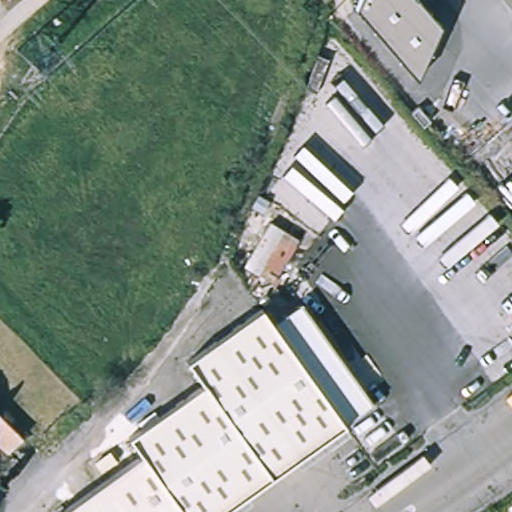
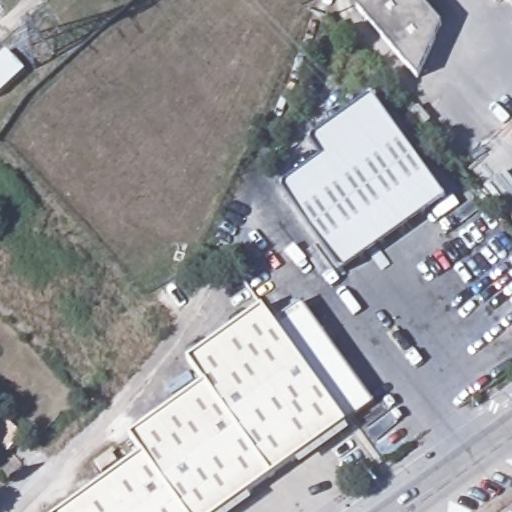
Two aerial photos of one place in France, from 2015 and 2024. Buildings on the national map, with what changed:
unchanged [(357,8),(360,0),(415,0),(439,26),(417,78),(357,8)]
unchanged [(512,0),(512,7),(506,0),(512,0)]
new [(444,198),(340,273),(278,187),(319,158),(306,140),(370,96),(444,198)]
unchanged [(142,454),(130,437),(162,414),(205,384),(188,361),(262,308),(273,324),(302,303),(374,405),(345,425),(228,508),(223,512),(61,512),(142,454)]
unchanged [(6,450),(0,444),(0,415),(20,436),(6,450)]

